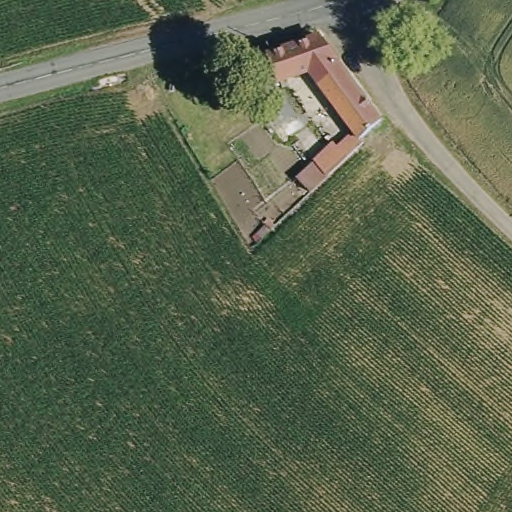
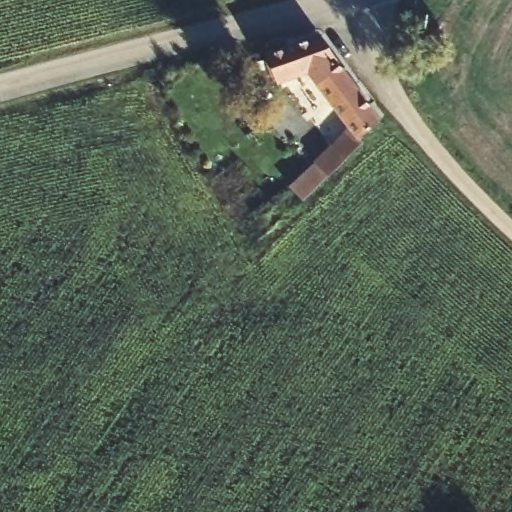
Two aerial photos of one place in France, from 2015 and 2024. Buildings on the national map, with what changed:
unchanged [(281,80),(267,52),(312,31),(332,57),(307,68),(281,80)]
unchanged [(307,68),(332,57),(354,87),(332,102),(307,68)]
unchanged [(354,87),(377,118),(356,134),(332,102),(354,87)]
unchanged [(364,145),(328,177),(310,195),(296,180),(312,163),(335,142),(340,149),(356,134),(364,145)]

